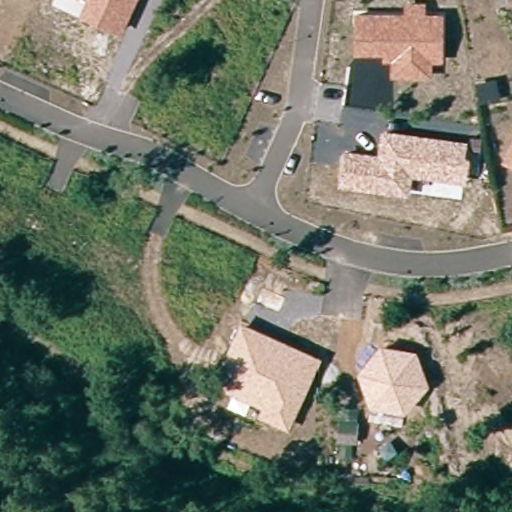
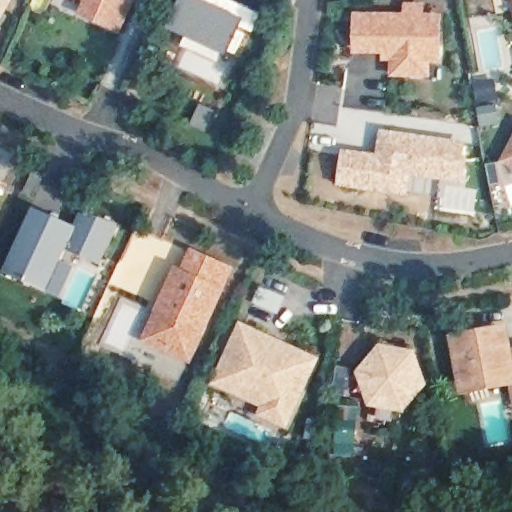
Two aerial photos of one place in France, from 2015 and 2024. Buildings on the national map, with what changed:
new [(0,15),(0,0),(9,0),(0,15)]
unchanged [(85,0),(136,0),(120,35),(78,16),(85,0)]
new [(170,30),(182,0),(231,0),(261,14),(253,32),(247,30),(237,54),(232,50),(227,56),(170,30)]
unchanged [(391,60),(382,60),(382,54),(355,53),(355,13),(405,12),(406,1),(426,1),(426,13),(444,14),(443,62),(433,62),(433,79),(392,77),(391,60)]
unchanged [(345,149),(378,153),(382,130),(468,140),(466,155),(471,156),(468,180),(413,175),(410,196),(340,187),(345,149)]
unchanged [(512,158),(512,161),(511,160),(512,158)]
new [(4,182),(0,190),(0,181),(4,182)]
new [(36,207),(77,225),(85,207),(121,224),(103,263),(69,248),(49,291),(7,272),(26,229),(36,207)]
new [(182,267),(223,286),(193,353),(151,334),(182,267)]
unchanged [(258,416),(263,403),(214,382),(241,321),(322,358),(290,430),(258,416)]
new [(463,388),(461,378),(456,380),(452,362),(458,361),(453,333),(502,325),(508,355),(512,354),(512,382),(512,379),(463,388)]
unchanged [(417,350),(431,385),(406,413),(369,406),(358,371),(381,344),(417,350)]

